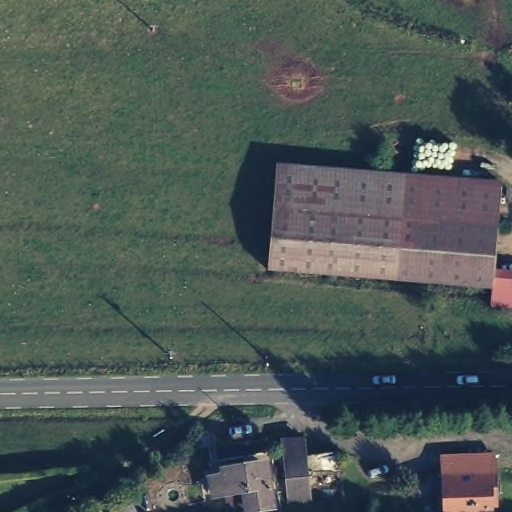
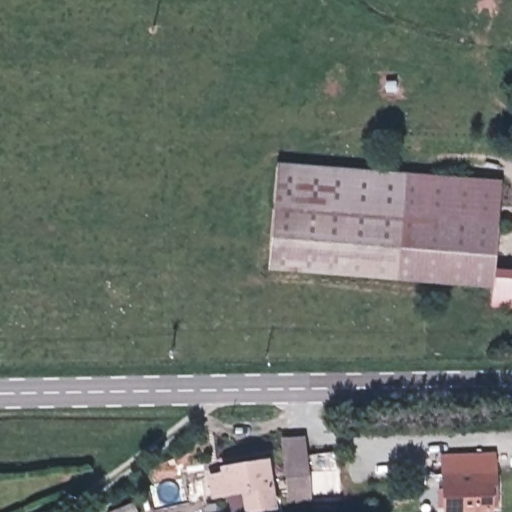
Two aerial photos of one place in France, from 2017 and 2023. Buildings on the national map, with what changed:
unchanged [(271,269),(281,159),(507,179),(490,276),(489,289),(271,269)]
unchanged [(512,283),(512,310),(495,310),(494,292),(495,292),(495,283),(512,283)]
unchanged [(294,503),(287,468),(285,453),(302,449),(305,466),(312,499),(294,503)]
unchanged [(487,454),(497,453),(498,512),(441,512),(442,505),(489,505),(487,464),(441,470),(440,458),(487,454)]
unchanged [(268,478),(272,478),(275,488),(272,489),(275,500),(252,506),(249,494),(230,498),(227,490),(215,492),(212,483),(211,477),(226,474),(225,468),(230,466),(229,461),(240,459),(242,463),(264,459),(265,467),(268,478)]
unchanged [(487,464),(489,505),(442,505),(441,470),(487,464)]
unchanged [(135,512),(107,512),(106,510),(128,497),(135,512)]

